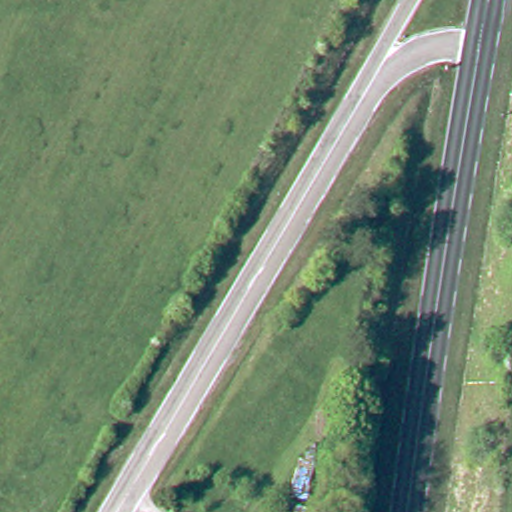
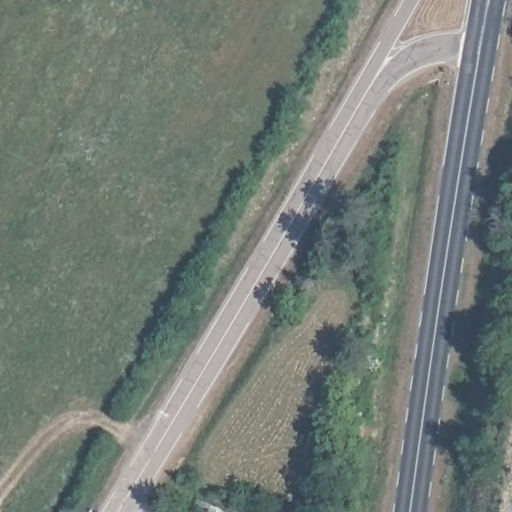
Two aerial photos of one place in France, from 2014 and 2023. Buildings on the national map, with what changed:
unchanged [(292,498),(315,509),(314,512),(287,512),(292,498)]

